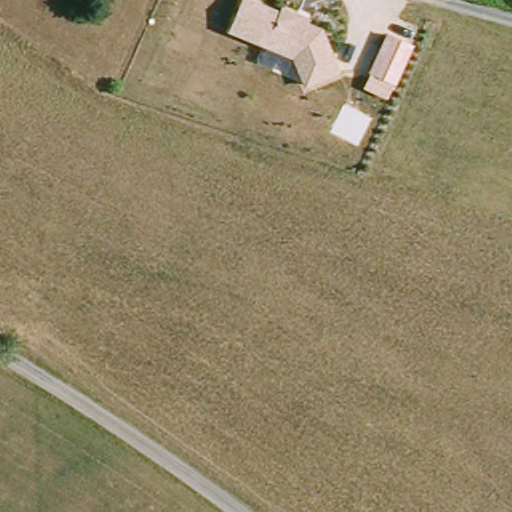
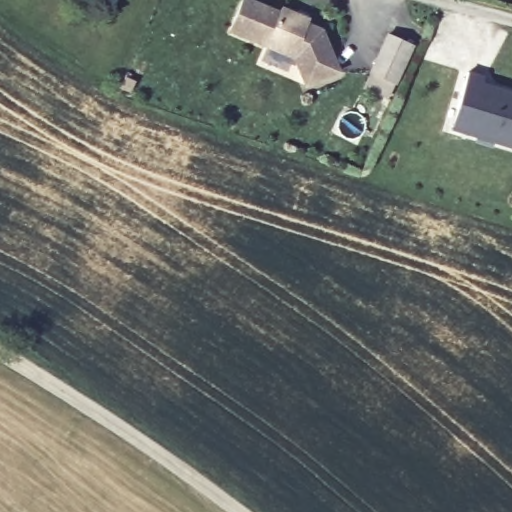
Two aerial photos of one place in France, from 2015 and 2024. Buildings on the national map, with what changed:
unchanged [(279,11),(281,6),(308,17),(307,21),(322,27),(340,71),(304,87),(291,58),(229,32),(242,0),(253,0),(279,11)]
unchanged [(413,44),(390,98),(363,87),(386,33),(413,44)]
new [(482,81),(480,88),(512,98),(512,151),(465,137),(465,134),(450,130),(455,112),(466,76),(482,81)]

